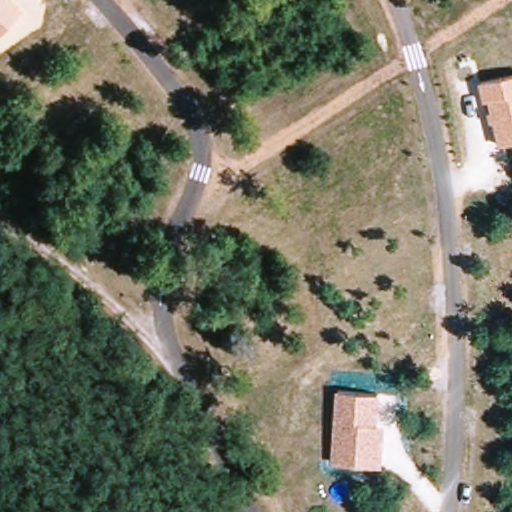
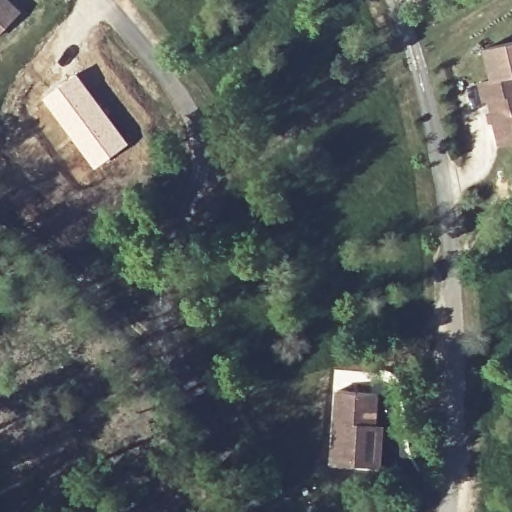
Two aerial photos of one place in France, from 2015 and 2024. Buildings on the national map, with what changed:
unchanged [(0,36),(0,0),(9,0),(22,12),(0,36)]
unchanged [(487,98),(482,82),(497,79),(487,46),(512,41),(512,142),(502,144),(492,96),(487,98)]
new [(75,71),(130,142),(93,170),(39,99),(75,71)]
unchanged [(378,394),(376,422),(386,423),(383,467),(331,464),(335,392),(378,394)]

